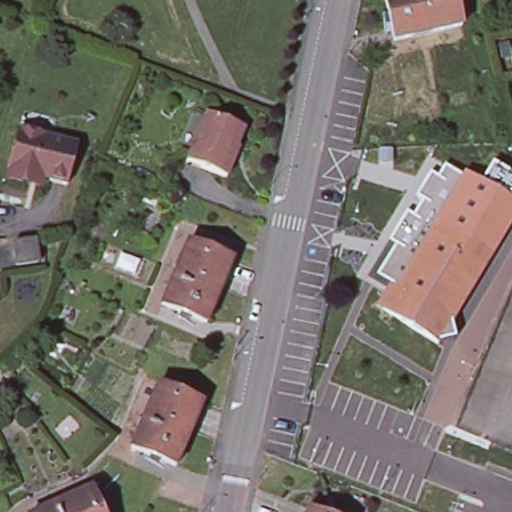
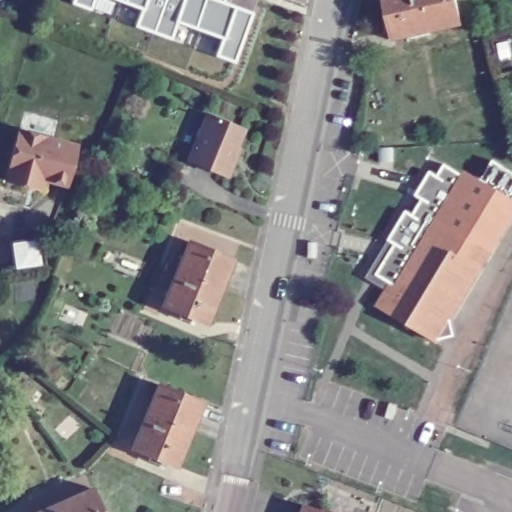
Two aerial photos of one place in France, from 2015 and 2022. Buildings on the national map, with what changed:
new [(71,0),(93,0),(90,9),(70,2),(71,0)]
new [(251,10),(233,60),(214,53),(220,36),(177,20),(170,37),(134,25),(140,7),(119,0),(223,0),(251,10)]
unchanged [(461,24),(394,40),(385,0),(455,0),(461,24)]
unchanged [(206,115),(207,112),(245,128),(234,155),(237,157),(229,176),(188,159),(194,145),(206,115)]
unchanged [(5,174),(7,169),(19,125),(77,143),(67,181),(42,174),(39,184),(5,174)]
unchanged [(443,341),(381,307),(392,286),(379,278),(397,246),(391,243),(409,213),(415,217),(423,202),(417,198),(432,173),(438,177),(445,165),(464,178),(468,170),(483,179),(493,161),(512,173),(512,226),(443,341)]
unchanged [(32,241),(35,262),(15,265),(12,244),(32,241)]
unchanged [(231,259),(205,322),(162,304),(187,241),(231,259)]
unchanged [(200,402),(172,466),(130,447),(157,384),(200,402)]
unchanged [(101,512),(35,512),(90,486),(101,512)]
unchanged [(303,512),(306,506),(321,512),(303,512)]

